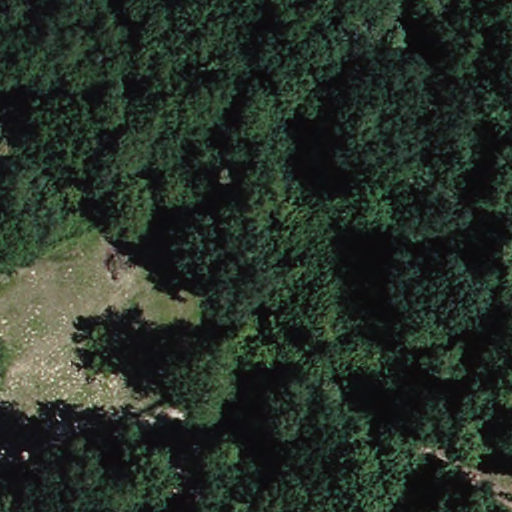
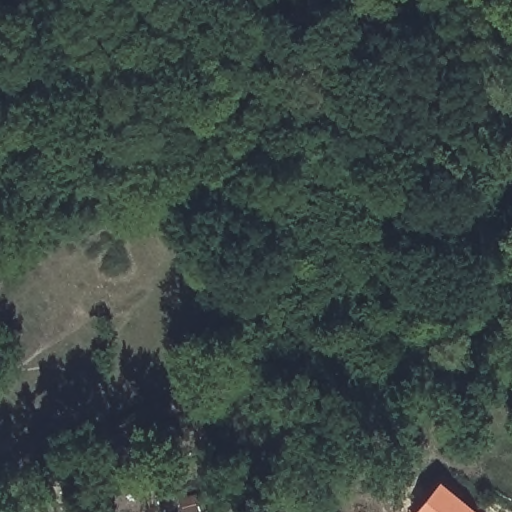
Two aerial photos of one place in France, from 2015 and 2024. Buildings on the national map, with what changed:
new [(475,512),(413,512),(438,482),(475,512)]

